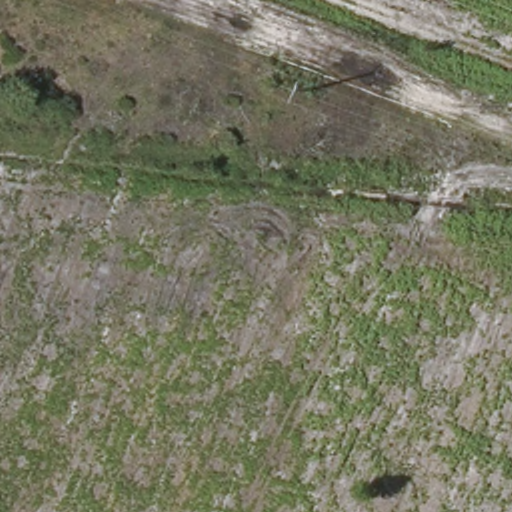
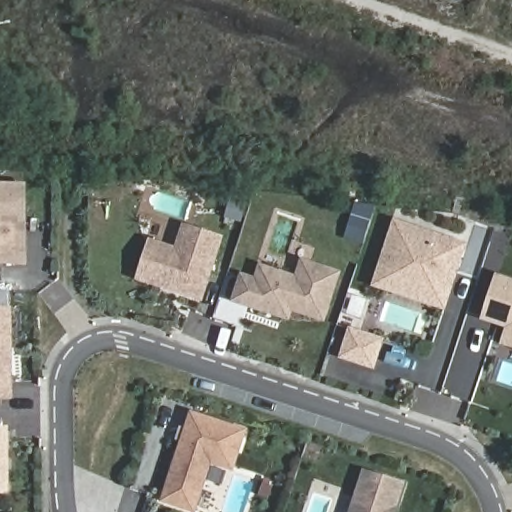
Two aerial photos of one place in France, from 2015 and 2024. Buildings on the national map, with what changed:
new [(0,184),(26,184),(26,265),(0,266),(0,184)]
new [(445,311),(371,288),(394,219),(467,243),(445,311)]
new [(202,303),(136,281),(149,239),(175,247),(182,223),(224,237),(202,303)]
new [(324,323),(292,312),(289,321),(231,302),(240,273),(255,277),(259,264),(295,275),(300,258),(341,272),(324,323)]
new [(480,320),(495,273),(512,279),(512,331),(480,320)]
new [(0,308),(12,308),(14,399),(0,399),(0,308)]
new [(338,359),(348,327),(384,338),(374,370),(338,359)]
new [(212,465),(196,512),(187,512),(159,502),(190,411),(247,430),(233,472),(212,465)]
new [(0,427),(8,427),(10,494),(0,494),(0,427)]
new [(405,484),(395,512),(348,512),(362,469),(405,484)]

